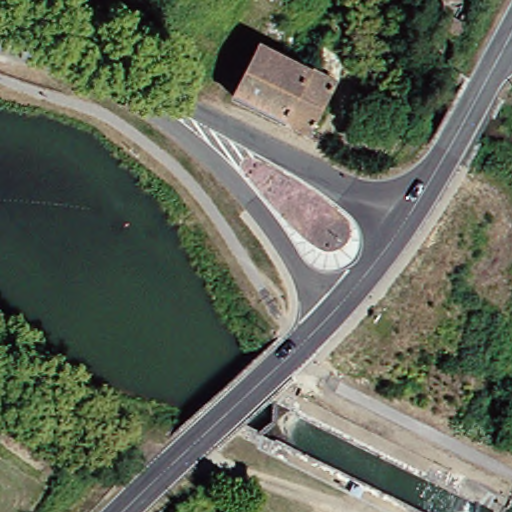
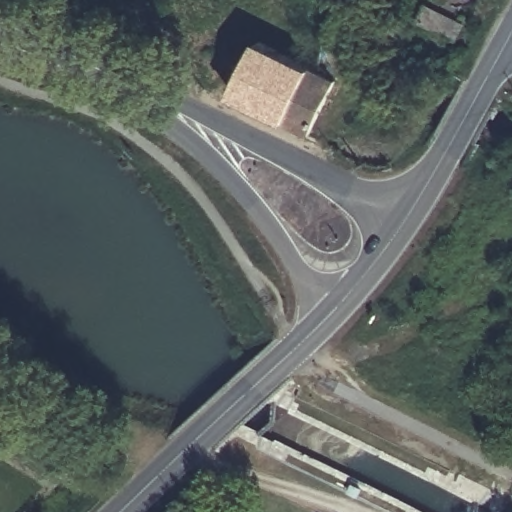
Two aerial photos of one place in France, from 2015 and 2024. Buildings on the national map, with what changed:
unchanged [(313,69),(330,78),(302,130),(225,95),(255,40),(295,60),(313,69)]

